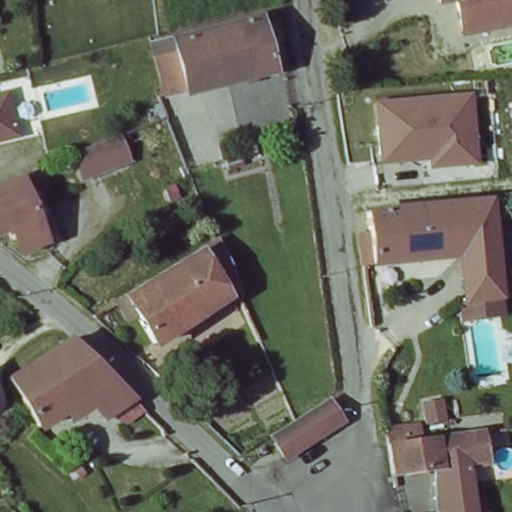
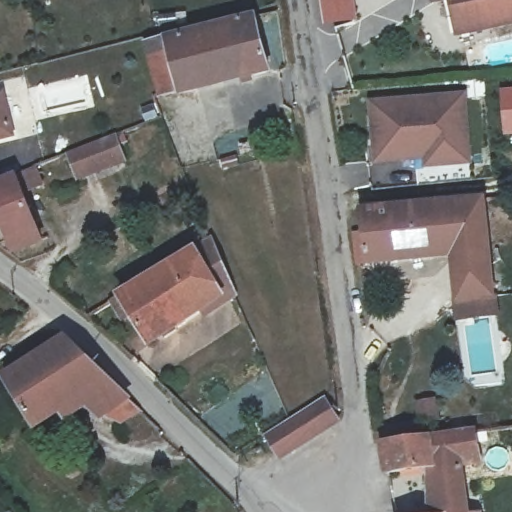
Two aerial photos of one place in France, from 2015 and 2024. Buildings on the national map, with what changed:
unchanged [(429,2),(428,0),(436,0),(429,2)]
unchanged [(451,33),(444,0),(512,0),(512,22),(490,26),(451,33)]
unchanged [(255,16),(265,70),(151,92),(143,58),(139,40),(255,16)]
new [(512,135),(502,136),(499,88),(512,87),(512,135)]
unchanged [(427,169),(425,161),(374,165),(367,102),(465,93),(472,165),(427,169)]
unchanged [(9,135),(0,136),(0,96),(9,135)]
unchanged [(113,137),(124,162),(80,180),(69,155),(113,137)]
unchanged [(14,257),(8,242),(0,222),(0,190),(20,182),(40,175),(47,190),(26,197),(40,232),(45,245),(14,257)]
unchanged [(457,314),(454,295),(447,249),(352,258),(350,242),(364,239),(362,206),(482,194),(494,291),(497,310),(457,314)]
unchanged [(212,240),(240,281),(241,284),(154,338),(132,306),(126,310),(120,302),(212,240)]
unchanged [(2,376),(7,373),(27,360),(46,347),(61,337),(136,408),(115,424),(104,409),(92,416),(79,396),(33,429),(2,376)]
unchanged [(291,422),(328,402),(341,424),(278,461),(264,438),(291,422)]
unchanged [(472,432),(475,462),(455,466),(463,512),(425,512),(423,471),(383,477),(376,445),(405,441),(472,432)]

